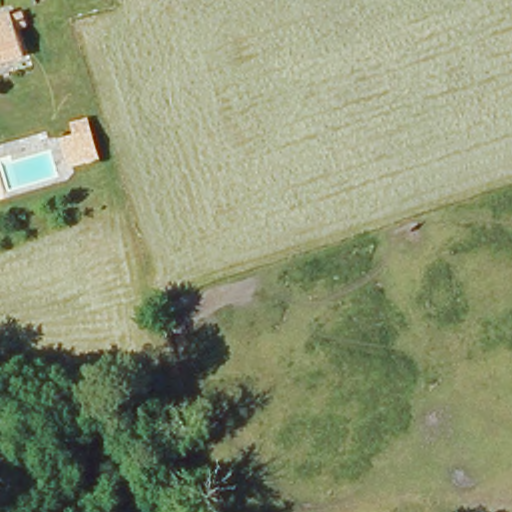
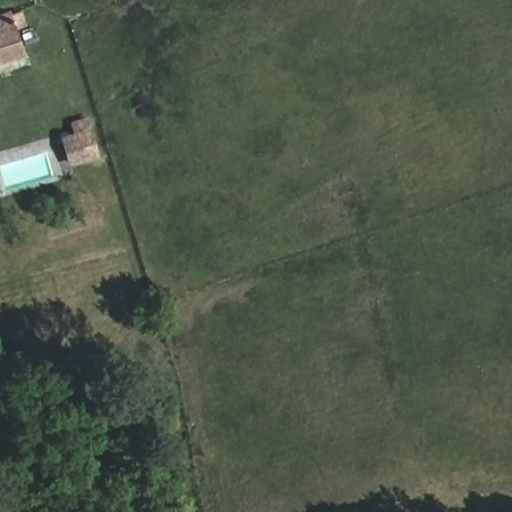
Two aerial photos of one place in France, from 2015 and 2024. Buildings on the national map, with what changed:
unchanged [(14,10),(22,31),(8,34),(15,63),(0,68),(0,15),(14,10)]
unchanged [(90,130),(100,160),(69,169),(59,139),(90,130)]

